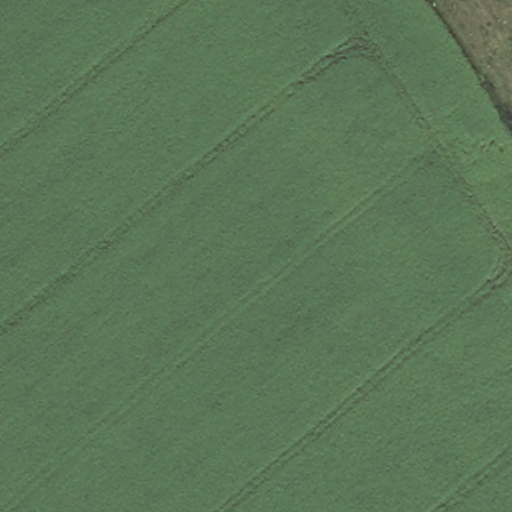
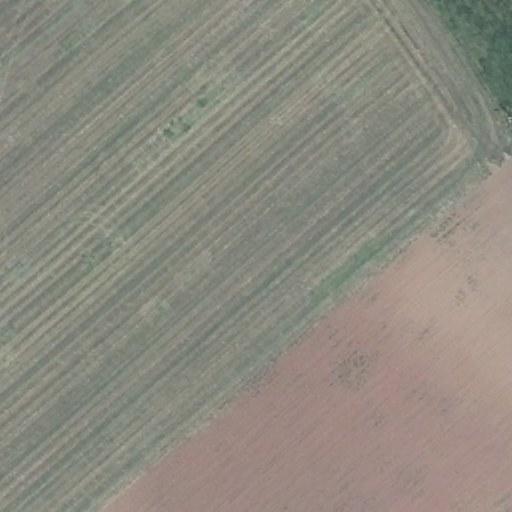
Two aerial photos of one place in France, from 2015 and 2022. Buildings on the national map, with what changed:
[]

